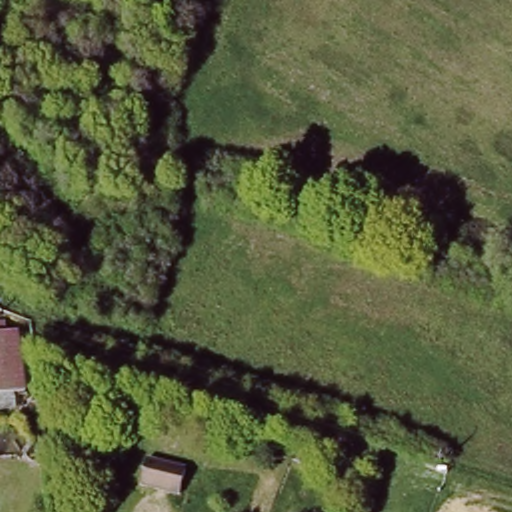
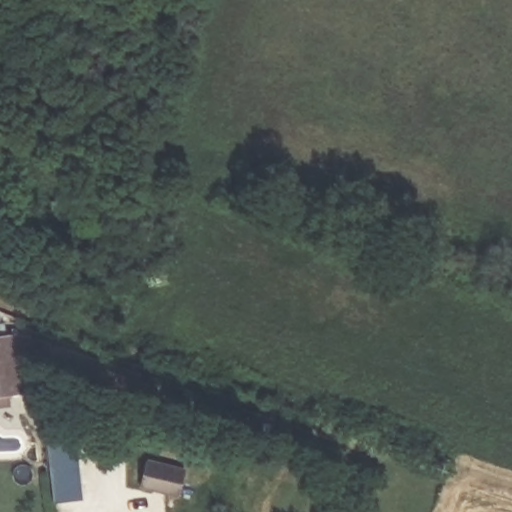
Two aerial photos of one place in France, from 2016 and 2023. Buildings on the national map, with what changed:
unchanged [(25,391),(0,394),(0,334),(17,331),(25,391)]
new [(55,501),(50,464),(46,437),(76,433),(80,460),(83,497),(55,501)]
unchanged [(150,458),(190,467),(186,488),(146,480),(150,458)]

